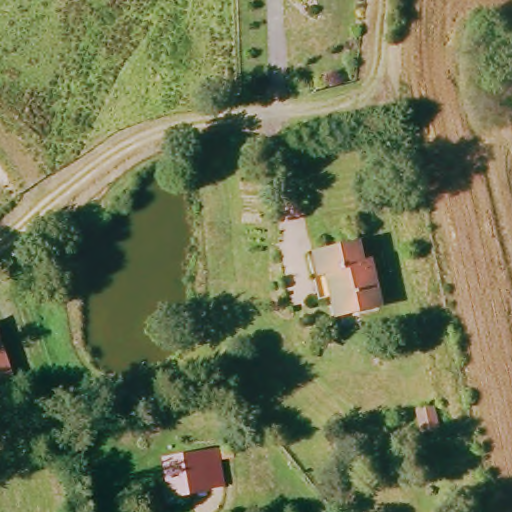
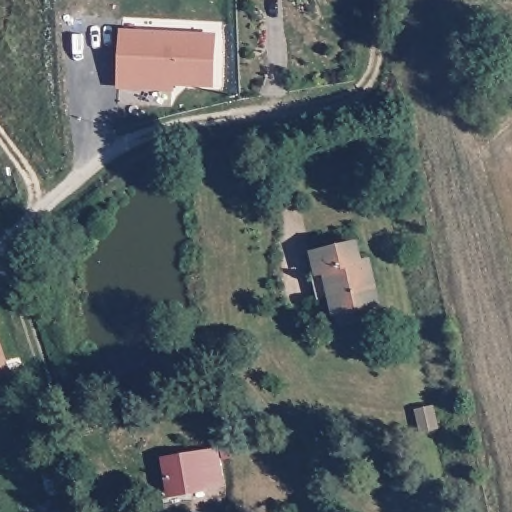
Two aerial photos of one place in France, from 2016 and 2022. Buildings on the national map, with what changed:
new [(132,57),(123,57),(124,35),(215,39),(214,87),(191,86),(191,81),(173,80),(173,92),(130,90),(132,57)]
unchanged [(363,264),(368,263),(377,305),(333,314),(329,296),(315,299),(306,255),(316,253),(357,246),(363,264)]
unchanged [(0,358),(6,377),(0,379),(0,358)]
unchanged [(424,414),(428,434),(417,435),(412,416),(424,414)]
unchanged [(223,477),(192,485),(193,490),(172,496),(163,462),(213,445),(223,477)]

